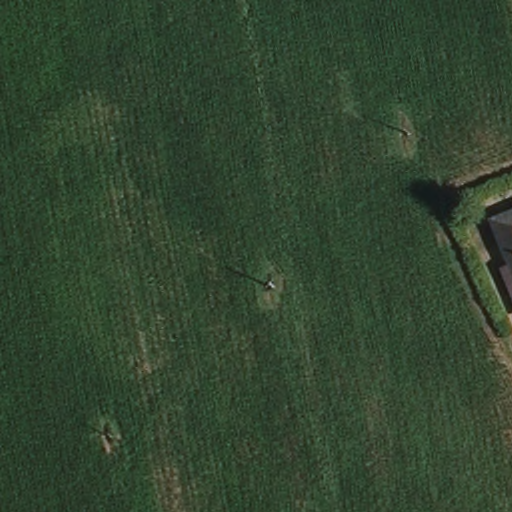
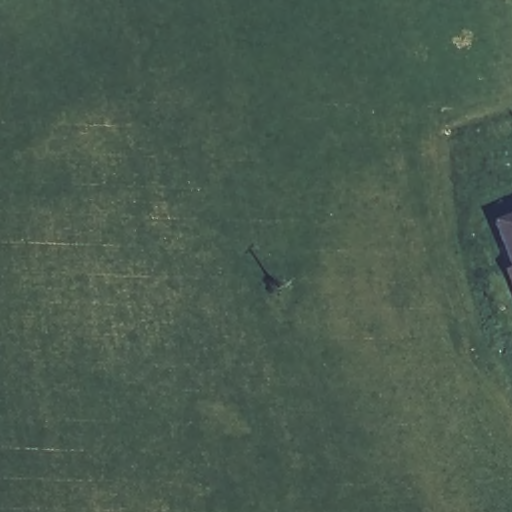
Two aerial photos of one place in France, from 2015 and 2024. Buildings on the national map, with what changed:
unchanged [(500,270),(504,265),(490,217),(512,212),(512,300),(500,270)]

